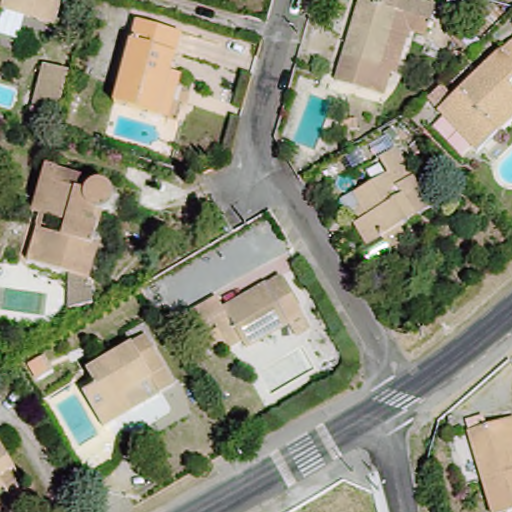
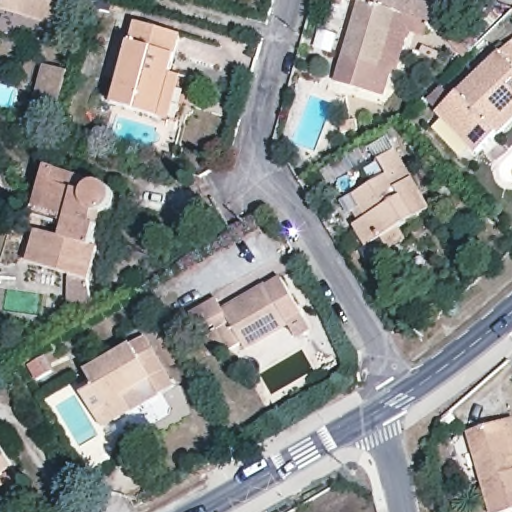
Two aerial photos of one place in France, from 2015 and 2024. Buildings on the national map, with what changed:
unchanged [(57,32),(3,17),(9,0),(66,0),(57,32)]
unchanged [(332,87),(357,4),(352,3),(353,0),(398,0),(430,10),(426,25),(392,15),(366,97),(332,87)]
unchanged [(163,121),(153,118),(110,104),(134,24),(175,35),(165,75),(176,78),(163,121)]
unchanged [(502,128),(481,147),(446,104),(512,45),(512,120),(502,128)]
unchanged [(60,121),(37,115),(51,66),(74,72),(60,121)]
unchanged [(388,250),(385,242),(368,252),(356,229),(363,224),(357,215),(366,210),(357,193),(387,177),(379,163),(397,153),(433,213),(402,232),(406,240),(388,250)]
unchanged [(65,235),(69,218),(61,215),(32,206),(45,167),(58,170),(110,183),(110,187),(115,188),(117,192),(116,199),(112,205),(97,209),(93,221),(100,222),(90,255),(95,258),(87,278),(27,260),(35,238),(38,227),(65,235)]
unchanged [(286,325),(287,329),(245,348),(242,344),(229,349),(217,328),(203,333),(193,316),(217,303),(223,311),(282,281),(297,309),(301,316),(286,325)]
unchanged [(90,421),(82,407),(77,404),(94,395),(85,377),(129,354),(137,365),(147,360),(167,396),(156,401),(148,388),(121,402),(127,417),(110,426),(97,432),(90,421)]
unchanged [(493,512),(467,440),(504,427),(512,425),(512,463),(510,463),(512,468),(512,512),(493,512)]
unchanged [(5,491),(0,494),(0,443),(23,481),(5,491)]
unchanged [(397,485),(401,503),(395,504),(390,487),(397,485)]

